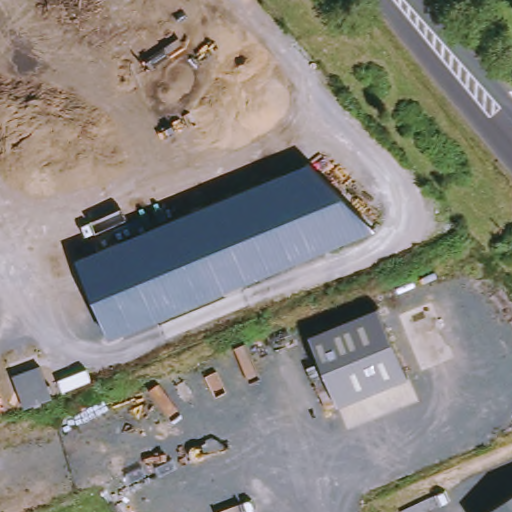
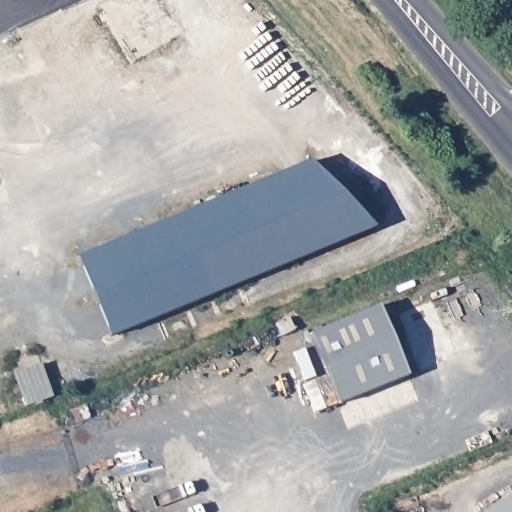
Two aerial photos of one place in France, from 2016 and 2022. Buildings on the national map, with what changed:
unchanged [(76,257),(307,162),(372,228),(108,336),(76,257)]
unchanged [(307,335),(377,306),(406,375),(336,404),(307,335)]
unchanged [(512,499),(512,512),(492,512),(512,499)]

